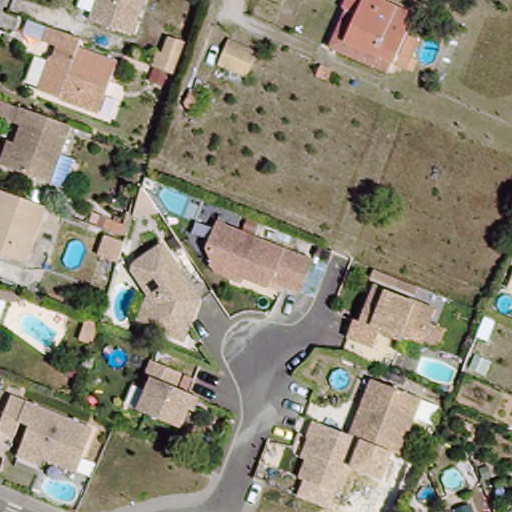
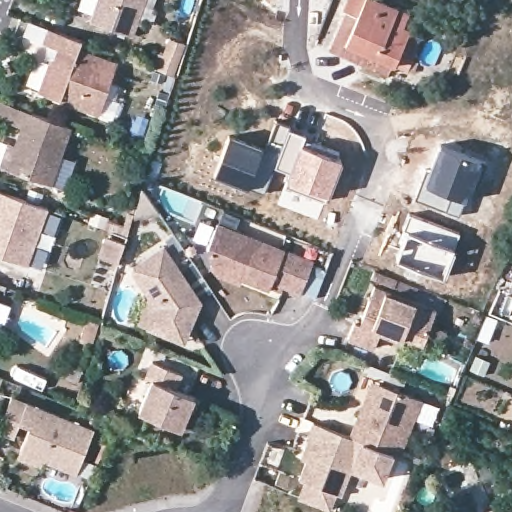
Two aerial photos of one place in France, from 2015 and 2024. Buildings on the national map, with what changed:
unchanged [(133,37),(89,21),(92,15),(77,9),(80,0),(146,0),(133,37)]
unchanged [(345,43),(394,65),(389,76),(328,50),(345,11),(342,9),(346,0),(363,0),(345,43)]
unchanged [(409,13),(402,31),(422,40),(408,70),(394,65),(345,43),(363,0),(380,0),(409,13)]
unchanged [(82,41),(79,49),(118,63),(99,115),(38,92),(51,57),(57,60),(61,49),(43,42),(48,29),(82,41)]
unchanged [(164,37),(188,45),(178,75),(154,66),(164,37)]
unchanged [(257,52),(244,81),(232,75),(231,71),(219,65),(230,40),(257,52)]
unchanged [(334,72),(330,82),(318,77),(323,67),(334,72)]
unchanged [(200,95),(195,110),(185,107),(190,92),(200,95)]
unchanged [(21,127),(14,125),(20,109),(72,127),(51,185),(6,169),(0,167),(0,164),(8,142),(15,145),(21,127)]
new [(277,204),(283,185),(287,171),(274,166),(282,145),(270,140),(277,121),(290,127),(306,134),(302,143),(344,157),(325,200),(317,219),(277,204)]
new [(230,134),(264,147),(257,165),(262,166),(262,165),(273,169),(263,190),(215,174),(230,134)]
new [(439,142),(485,160),(468,200),(461,215),(416,197),(422,182),(439,142)]
unchanged [(47,209),(27,265),(0,256),(0,192),(47,209)]
new [(409,212),(460,231),(445,277),(395,258),(409,212)]
unchanged [(223,275),(215,267),(217,262),(211,250),(221,225),(317,262),(305,293),(277,282),(274,290),(246,279),(244,284),(223,275)]
new [(117,261),(100,257),(106,237),(123,242),(117,261)]
unchanged [(181,342),(147,328),(138,325),(151,296),(137,275),(139,269),(168,250),(205,305),(191,338),(188,345),(181,342)]
unchanged [(398,342),(384,337),(378,353),(352,343),(358,326),(364,328),(378,291),(440,315),(427,349),(408,341),(406,346),(398,342)]
unchanged [(99,323),(92,345),(79,341),(87,319),(99,323)]
unchanged [(193,415),(188,412),(180,432),(138,415),(150,384),(144,381),(150,365),(180,377),(174,392),(193,400),(198,401),(193,415)]
unchanged [(404,460),(367,445),(355,440),(369,405),(377,385),(384,387),(426,403),(404,460)]
unchanged [(15,461),(20,450),(29,427),(19,423),(14,437),(0,432),(0,423),(11,397),(93,430),(76,473),(43,460),(38,470),(15,461)]
unchanged [(367,445),(346,499),(303,482),(311,464),(306,462),(313,442),(318,426),(355,440),(367,445)]
unchanged [(285,445),(276,469),(259,462),(268,441),(285,445)]

